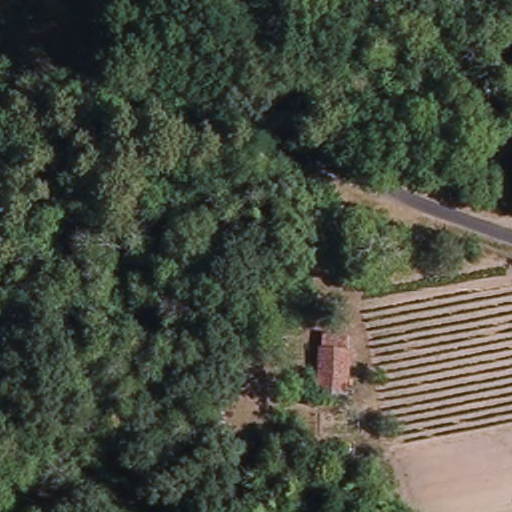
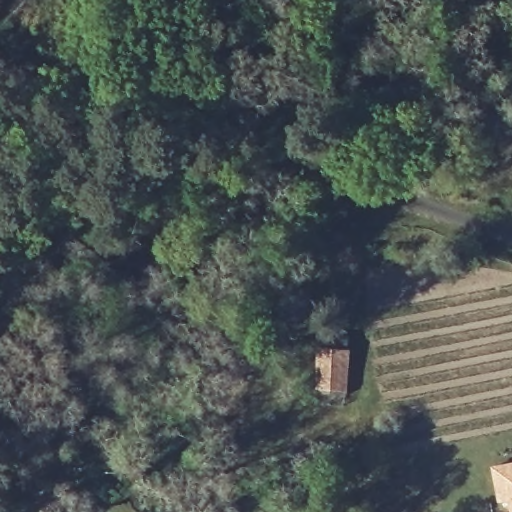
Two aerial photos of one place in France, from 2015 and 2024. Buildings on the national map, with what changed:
unchanged [(321,346),(346,349),(341,386),(316,383),(321,346)]
new [(511,512),(508,499),(498,500),(492,466),(512,462),(512,512),(511,512)]

